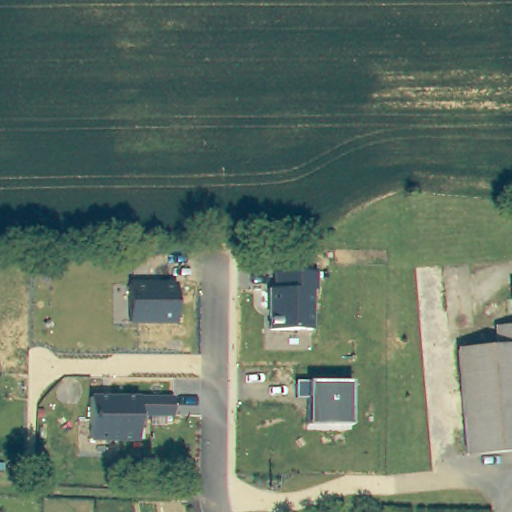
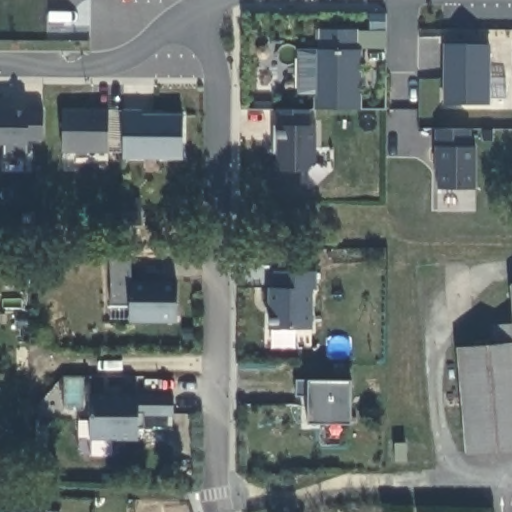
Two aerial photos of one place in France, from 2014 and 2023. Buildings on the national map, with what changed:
new [(312,96),(314,96),(316,49),(318,49),(318,29),(356,29),(356,49),(360,50),(359,110),(312,110),(312,96)]
new [(487,105),(441,104),(441,44),(488,44),(487,105)]
new [(30,108),(29,111),(42,111),(43,140),(29,140),(27,158),(2,157),(3,145),(0,145),(0,109),(30,108)]
new [(107,155),(62,154),(64,110),(107,110),(107,155)]
new [(181,159),(122,158),(122,110),(141,110),(142,115),(182,115),(181,159)]
new [(308,125),(315,125),(315,162),(304,172),(276,172),(276,156),(272,155),(272,125),(277,125),(277,110),(308,110),(308,125)]
new [(435,190),(436,172),(432,172),(434,129),(469,129),(469,147),(475,147),(474,189),(435,190)]
unchanged [(268,331),(270,268),(310,271),(309,329),(268,331)]
unchanged [(128,323),(128,281),(175,282),(175,325),(128,323)]
unchanged [(512,282),(512,287),(511,282),(512,282)]
unchanged [(496,323),(512,320),(512,447),(468,451),(458,346),(498,341),(496,323)]
unchanged [(306,423),(307,400),(294,399),(295,382),(308,382),(351,384),(350,425),(306,423)]
unchanged [(89,442),(89,395),(171,395),(171,418),(139,418),(138,440),(89,442)]

